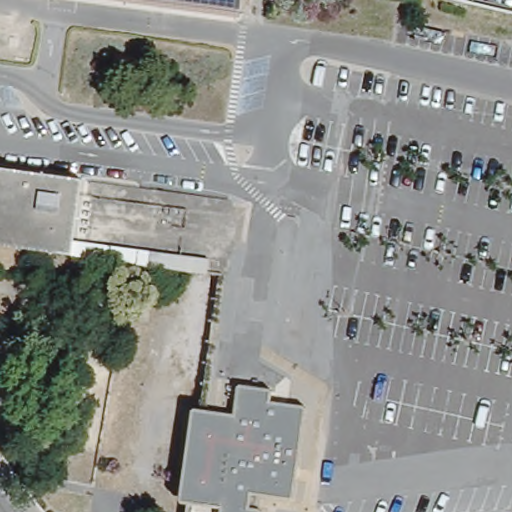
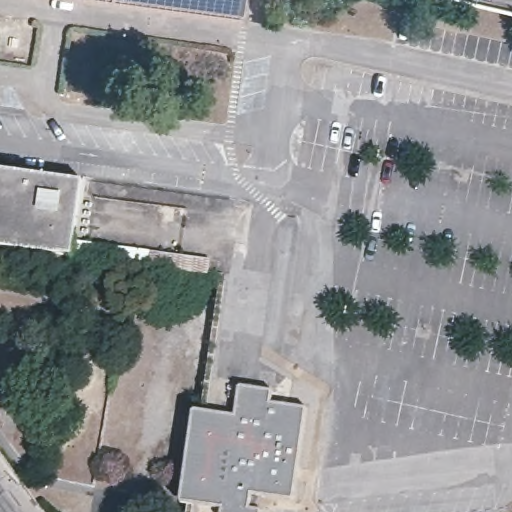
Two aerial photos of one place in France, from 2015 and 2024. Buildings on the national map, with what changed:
unchanged [(99,0),(256,0),(254,21),(99,0)]
unchanged [(66,257),(0,248),(0,167),(78,181),(66,257)]
unchanged [(225,510),(181,504),(195,409),(238,416),(241,384),(276,388),(275,401),(312,407),(300,502),(259,496),(258,508),(269,509),(268,512),(225,512),(225,510)]

